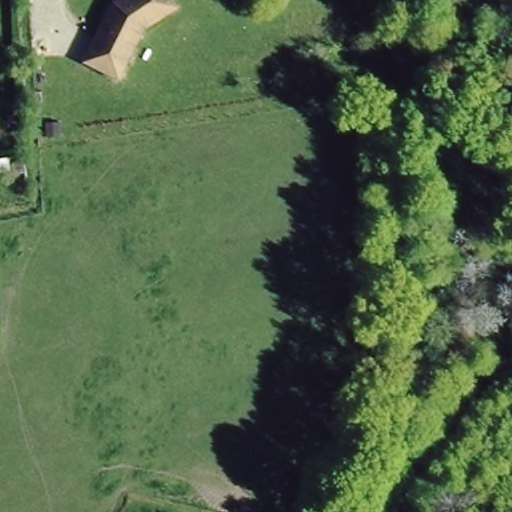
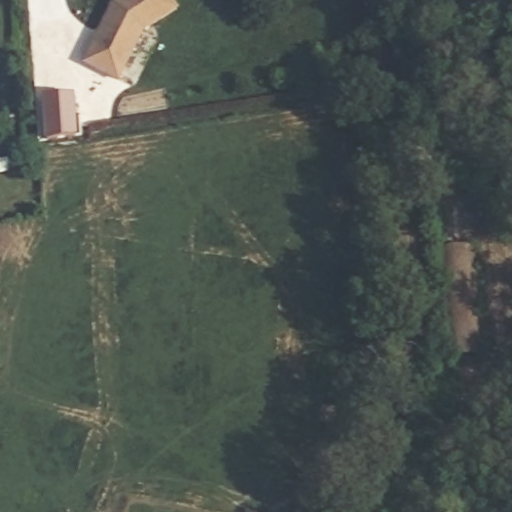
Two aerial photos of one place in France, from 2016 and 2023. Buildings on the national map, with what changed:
unchanged [(144,29),(120,80),(82,63),(113,1),(115,0),(175,0),(180,8),(144,29)]

